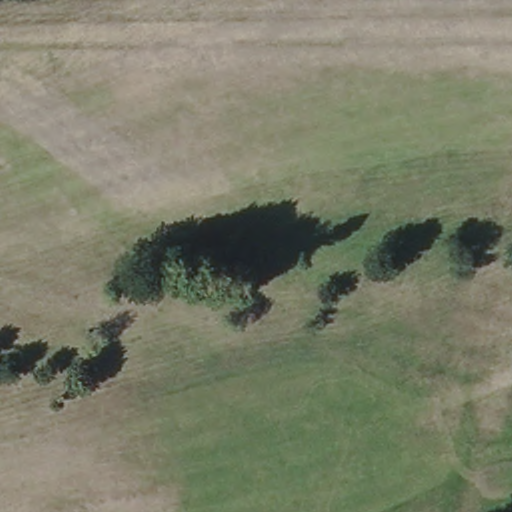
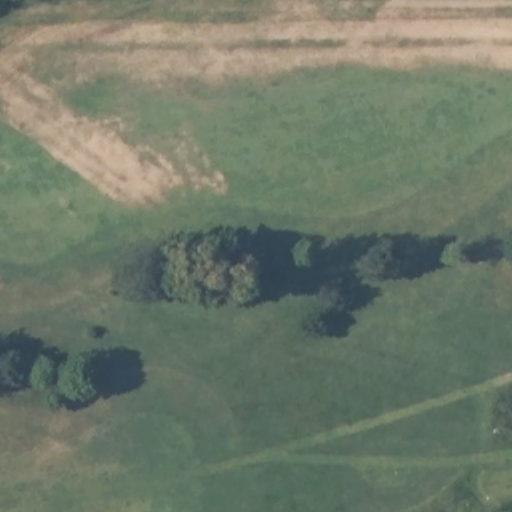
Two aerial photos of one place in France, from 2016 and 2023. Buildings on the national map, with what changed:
[]

